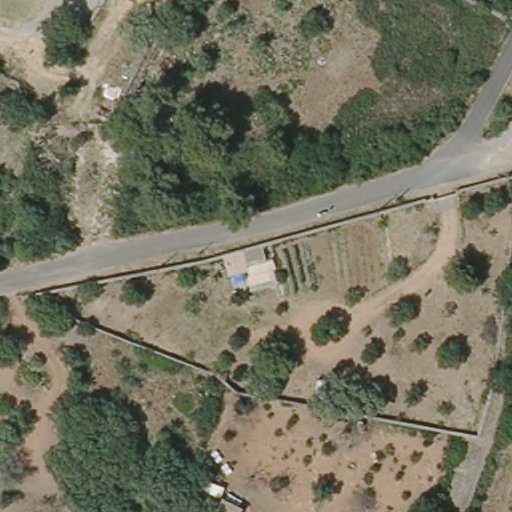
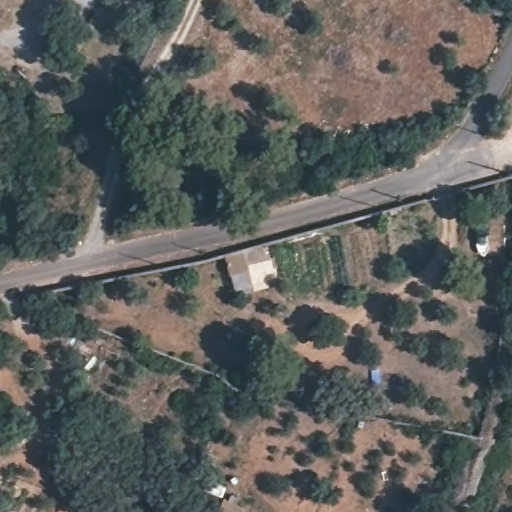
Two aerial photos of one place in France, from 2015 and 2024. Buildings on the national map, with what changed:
unchanged [(261,246),(265,261),(250,269),(253,282),(246,285),(242,275),(228,277),(223,259),(242,255),(261,246)]

